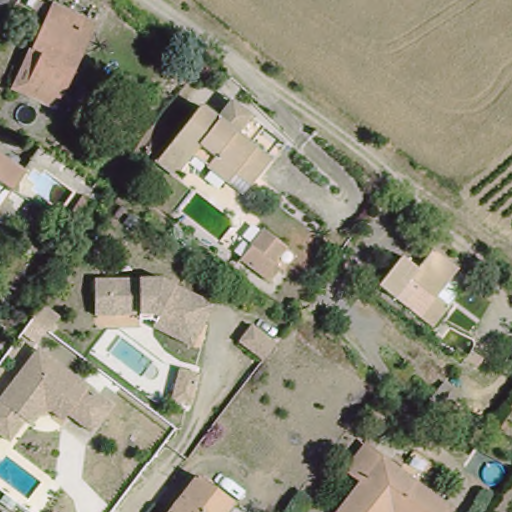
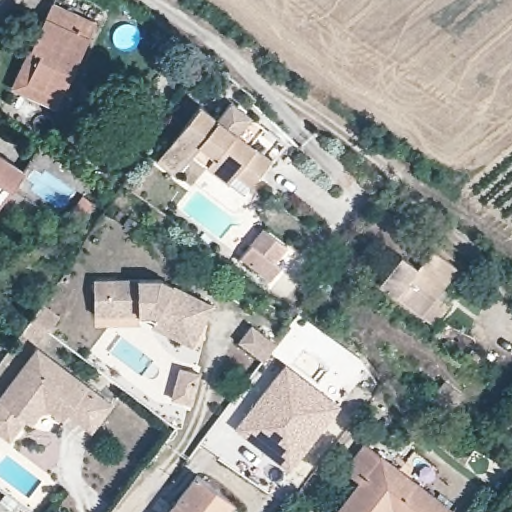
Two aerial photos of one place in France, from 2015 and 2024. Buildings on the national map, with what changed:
unchanged [(32,44),(52,0),(54,0),(97,19),(62,95),(57,105),(13,85),(32,44)]
unchanged [(230,177),(193,150),(178,170),(160,156),(202,103),(219,116),(233,98),(251,112),(265,123),(252,140),(272,156),(251,181),(244,189),(230,177)]
unchanged [(8,188),(0,182),(0,158),(20,171),(8,188)]
unchanged [(70,217),(84,197),(95,205),(81,225),(70,217)]
unchanged [(288,248),(275,264),(283,270),(273,283),(243,260),(265,231),(288,248)]
unchanged [(434,249),(459,269),(422,318),(381,286),(404,257),(420,268),(434,249)]
unchanged [(100,315),(99,303),(98,265),(166,264),(219,289),(198,330),(160,312),(163,305),(158,302),(141,302),(141,314),(100,315)]
unchanged [(252,327),(276,345),(264,362),(240,343),(252,327)]
unchanged [(43,413),(33,425),(27,421),(11,440),(0,431),(0,401),(40,349),(114,405),(93,431),(71,414),(66,421),(53,411),(43,413)]
new [(289,471),(236,429),(286,363),(341,405),(289,471)]
new [(167,374),(185,376),(181,404),(163,401),(167,374)]
unchanged [(341,510),(339,508),(362,478),(348,466),(367,440),(400,466),(422,483),(452,506),(446,512),(396,512),(393,510),(391,512),(340,512),(341,510)]
unchanged [(199,467),(234,492),(234,493),(226,504),(231,507),(226,512),(164,512),(199,467)]

